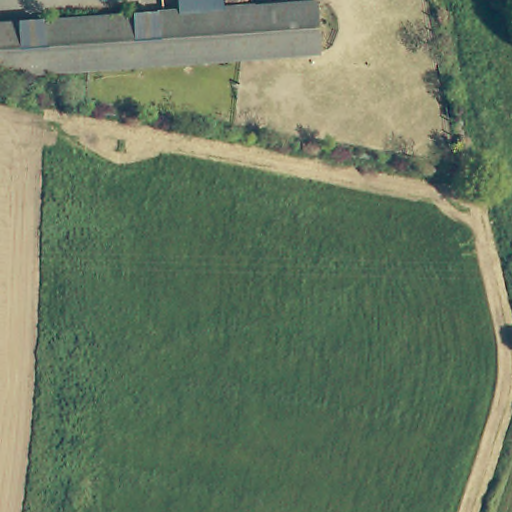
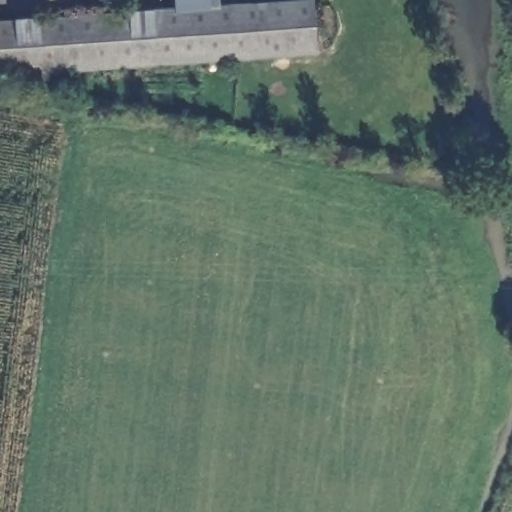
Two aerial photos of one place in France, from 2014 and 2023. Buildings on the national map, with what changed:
unchanged [(315,50),(0,70),(0,17),(272,0),(312,0),(315,50)]

